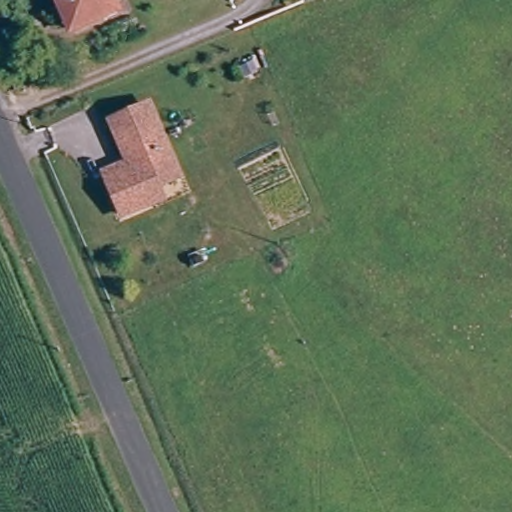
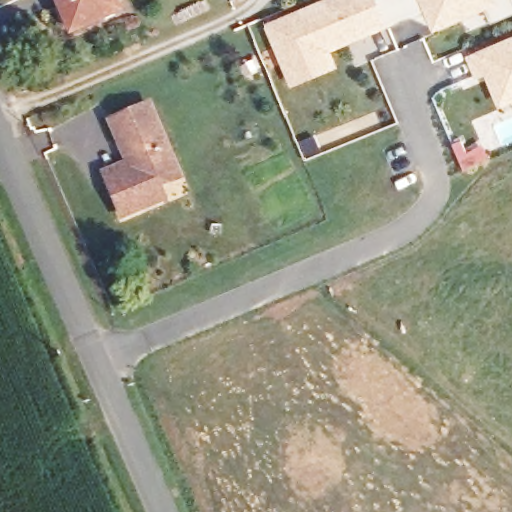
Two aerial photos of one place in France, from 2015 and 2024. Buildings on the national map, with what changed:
unchanged [(61,9),(57,0),(114,0),(118,11),(99,19),(71,32),(61,9)]
new [(292,88),(266,26),(327,0),(378,0),(390,29),(334,53),(339,68),(292,88)]
new [(512,15),(492,23),(485,8),(434,32),(430,25),(415,17),(389,27),(378,0),(512,0),(512,15)]
new [(490,80),(494,78),(491,71),(478,77),(471,60),(512,43),(512,101),(501,105),(490,80)]
unchanged [(139,199),(118,207),(102,170),(127,160),(107,112),(108,112),(144,96),(174,169),(173,169),(152,178),(157,191),(139,199)]
new [(461,141),(466,156),(485,149),(491,161),(463,173),(451,145),(461,141)]

